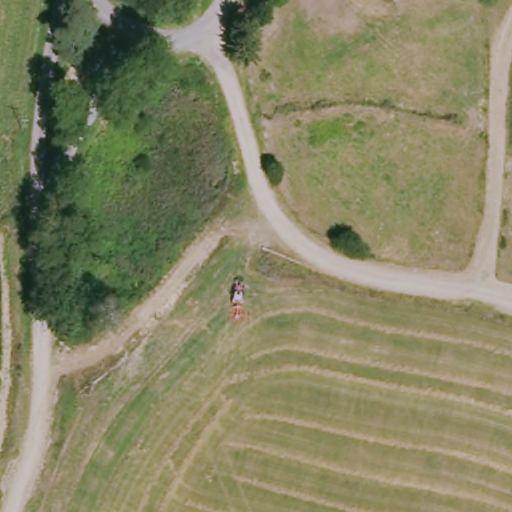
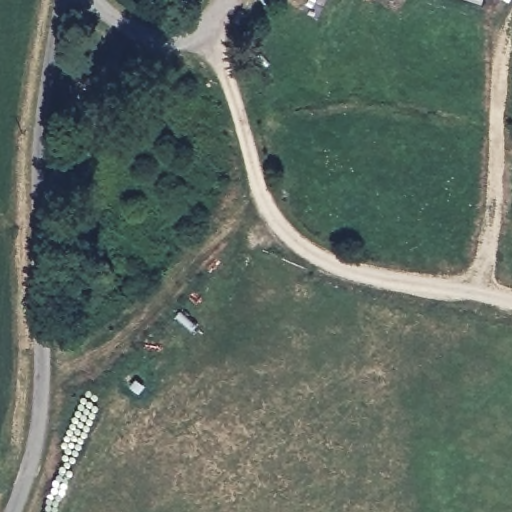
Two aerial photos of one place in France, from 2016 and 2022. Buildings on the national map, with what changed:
unchanged [(478,0),(485,0),(484,2),(478,0)]

